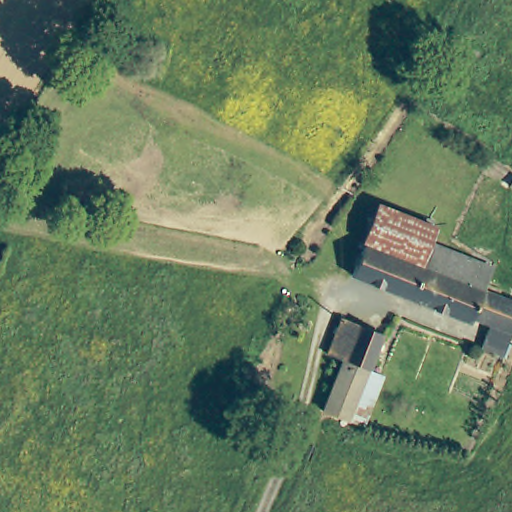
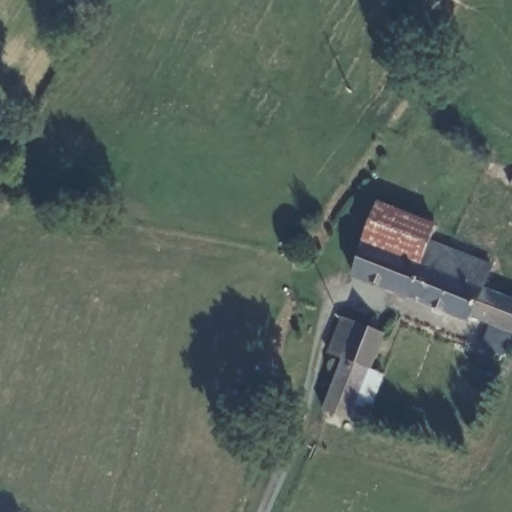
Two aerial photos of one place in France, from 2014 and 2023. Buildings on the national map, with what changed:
unchanged [(512,195),(509,200),(497,195),(502,183),(512,188),(512,195)]
unchanged [(368,233),(383,197),(438,224),(433,235),(423,259),(371,234),(368,233)]
unchanged [(433,235),(490,262),(480,285),(512,300),(512,329),(470,310),(467,315),(357,265),(371,234),(423,259),(433,235)]
unchanged [(372,363),(387,370),(368,418),(328,402),(346,353),(334,348),(346,315),(384,331),(372,363)]

